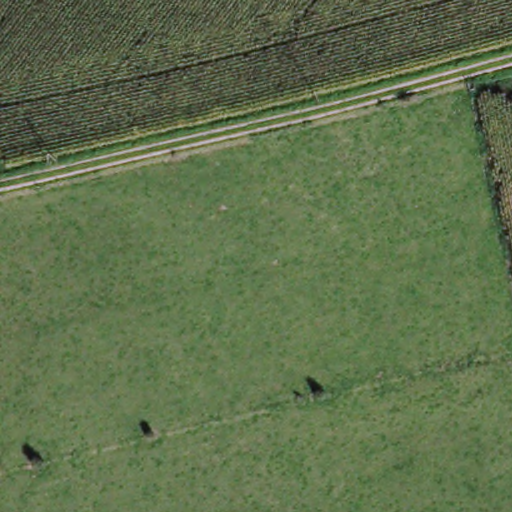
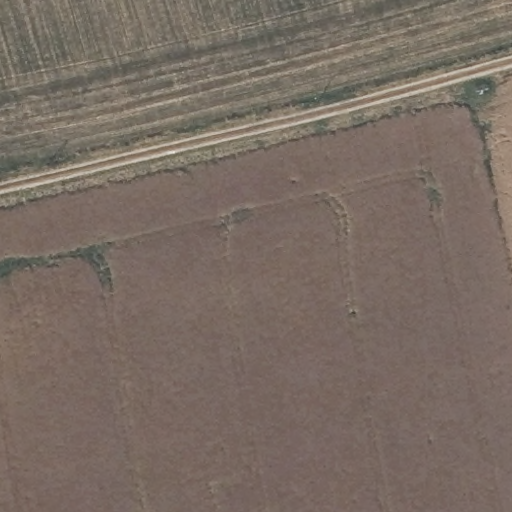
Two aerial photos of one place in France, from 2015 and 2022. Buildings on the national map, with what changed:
[]

